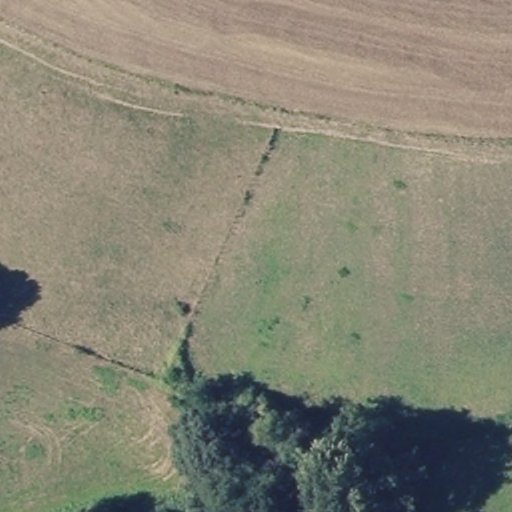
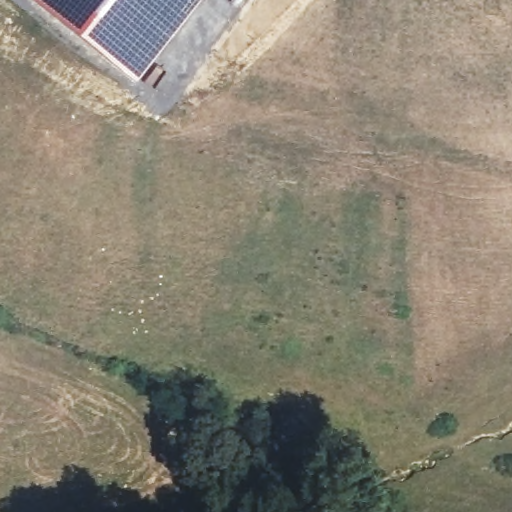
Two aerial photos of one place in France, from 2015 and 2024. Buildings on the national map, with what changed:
new [(136,83),(72,34),(32,0),(202,0),(136,83)]

